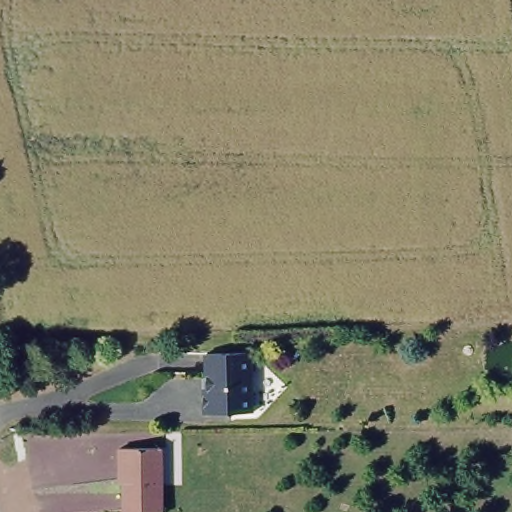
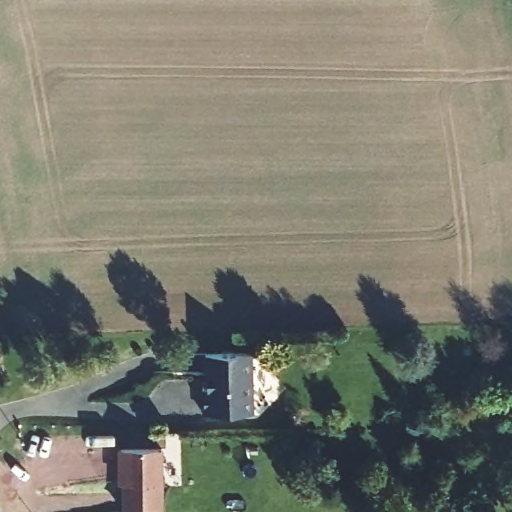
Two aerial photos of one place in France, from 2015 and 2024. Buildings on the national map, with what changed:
unchanged [(207,389),(210,389),(210,378),(207,378),(209,354),(254,355),(254,413),(236,414),(230,419),(227,414),(205,414),(207,389)]
unchanged [(165,512),(129,512),(130,473),(124,472),(124,447),(166,448),(165,512)]

